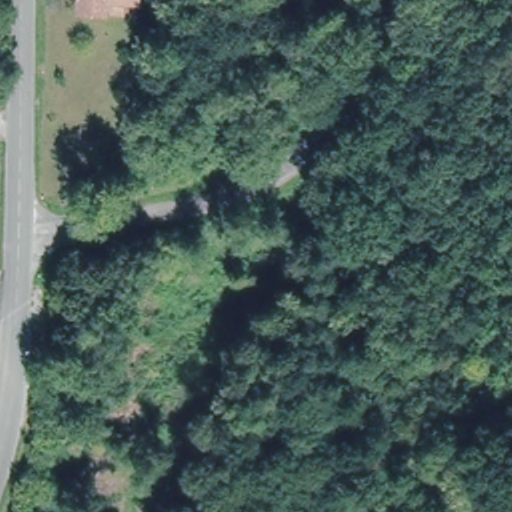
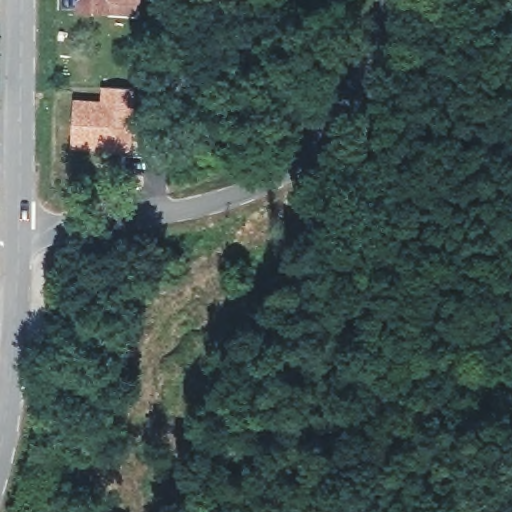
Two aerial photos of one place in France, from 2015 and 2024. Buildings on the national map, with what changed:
unchanged [(75,10),(76,0),(134,0),(134,14),(75,10)]
new [(101,86),(137,88),(134,151),(72,149),(75,98),(101,100),(101,86)]

